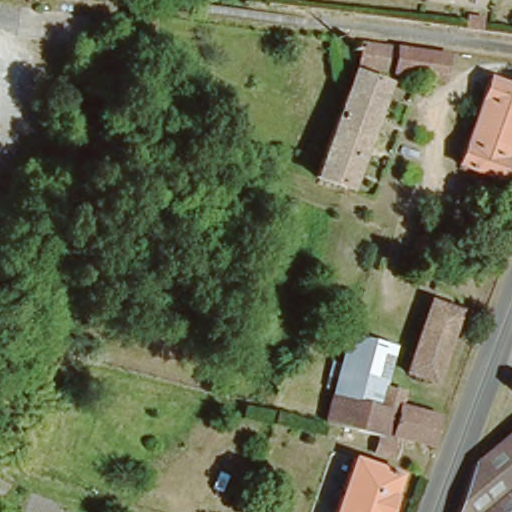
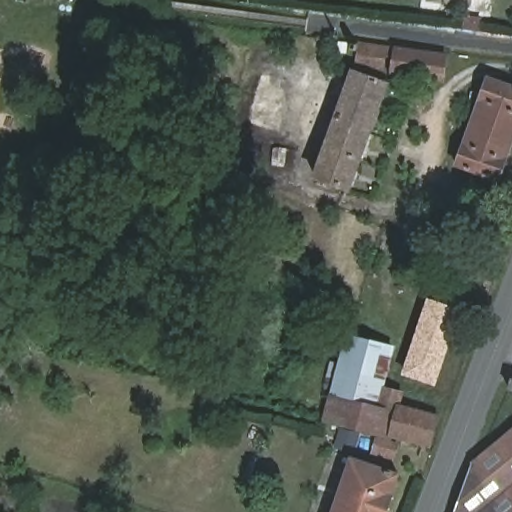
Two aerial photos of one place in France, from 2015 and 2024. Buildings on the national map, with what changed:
unchanged [(406,46),(443,51),(440,78),(392,71),(394,45),(406,46)]
unchanged [(343,89),(350,70),(383,83),(345,187),(312,175),(320,154),(343,89)]
unchanged [(512,148),(501,179),(459,162),(491,76),(512,85),(512,148)]
unchanged [(425,222),(421,237),(409,234),(414,219),(425,222)]
unchanged [(460,309),(437,380),(408,370),(432,299),(460,309)]
unchanged [(309,315),(321,320),(317,331),(304,327),(309,315)]
unchanged [(349,334),(394,348),(384,385),(405,391),(402,404),(439,415),(431,445),(394,433),(399,411),(333,392),(349,334)]
unchanged [(333,392),(399,411),(394,433),(393,438),(362,429),(326,419),(333,392)]
unchanged [(460,488),(470,463),(512,428),(512,512),(451,512),(460,488)]
unchanged [(352,457),(397,473),(388,498),(383,512),(331,512),(352,457)]

